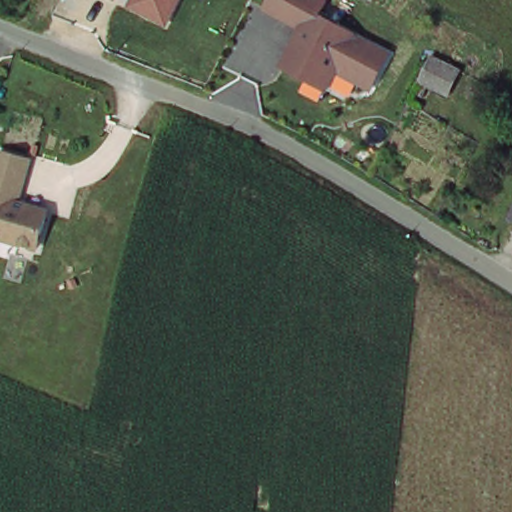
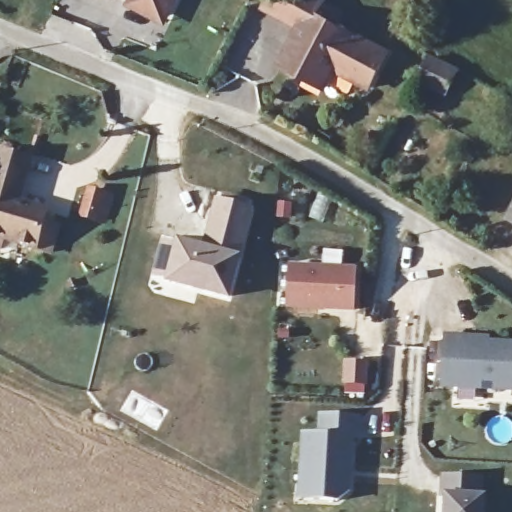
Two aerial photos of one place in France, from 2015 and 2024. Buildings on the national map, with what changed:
unchanged [(166,25),(128,6),(130,0),(179,0),(166,25)]
unchanged [(375,89),(341,73),(332,95),(280,68),(300,25),(265,11),(271,0),(331,0),(324,18),(393,50),(375,89)]
unchanged [(447,87),(420,76),(429,58),(456,72),(447,87)]
unchanged [(27,201),(52,208),(40,251),(0,241),(0,149),(37,159),(27,201)]
new [(107,192),(97,224),(77,218),(87,185),(107,192)]
new [(165,284),(165,279),(152,276),(160,240),(175,242),(177,238),(202,246),(215,198),(222,200),(224,193),(249,200),(248,208),(255,209),(241,259),(230,303),(165,284)]
unchanged [(512,216),(512,218),(511,218),(512,216)]
new [(354,311),(285,309),(287,263),(355,267),(354,311)]
new [(489,336),(489,341),(512,342),(512,391),(440,388),(442,334),(489,336)]
new [(300,432),(315,432),(317,413),(359,416),(358,440),(352,440),(350,490),(336,501),(295,500),(300,432)]
unchanged [(438,497),(440,475),(482,477),(479,494),(485,494),(485,512),(442,512),(442,497),(438,497)]

